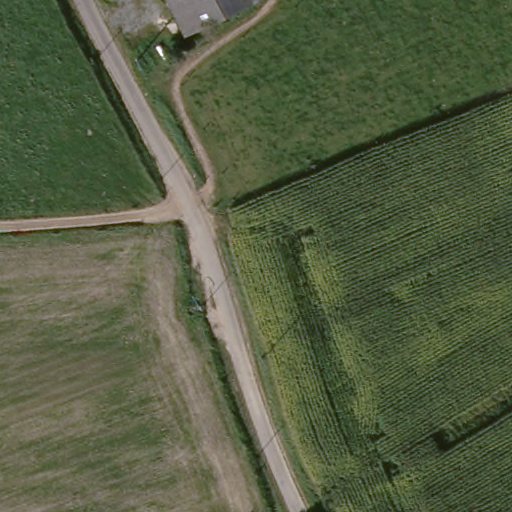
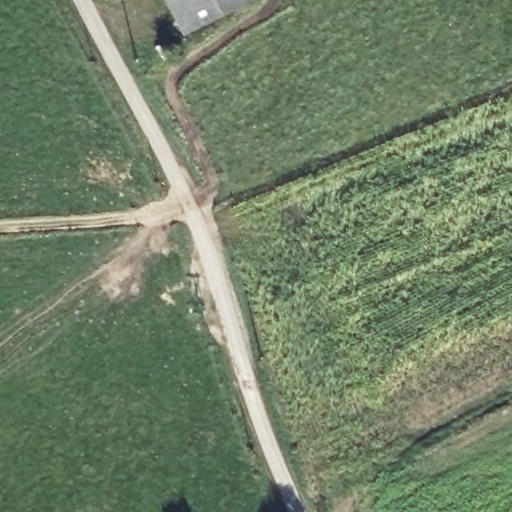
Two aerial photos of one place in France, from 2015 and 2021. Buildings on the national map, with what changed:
unchanged [(180,40),(160,0),(261,0),(180,40)]

